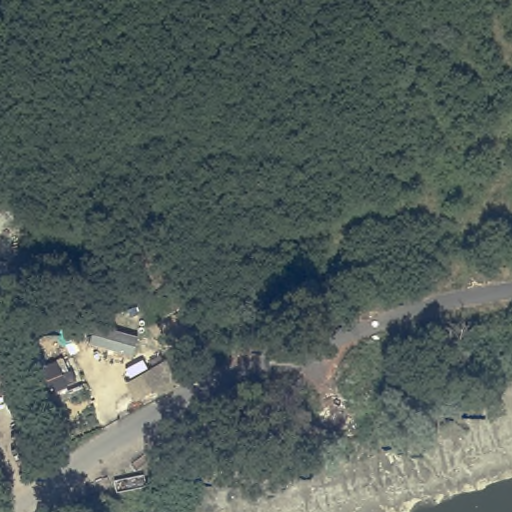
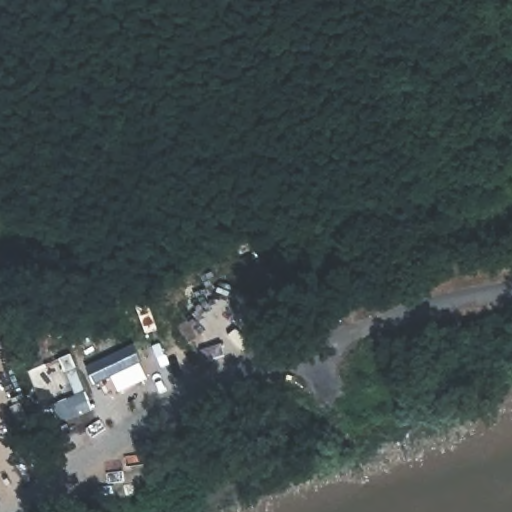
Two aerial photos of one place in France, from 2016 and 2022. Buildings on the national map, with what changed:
unchanged [(94,325),(133,337),(127,356),(88,344),(94,325)]
unchanged [(77,383),(39,400),(22,361),(40,353),(44,364),(65,356),(77,383)]

